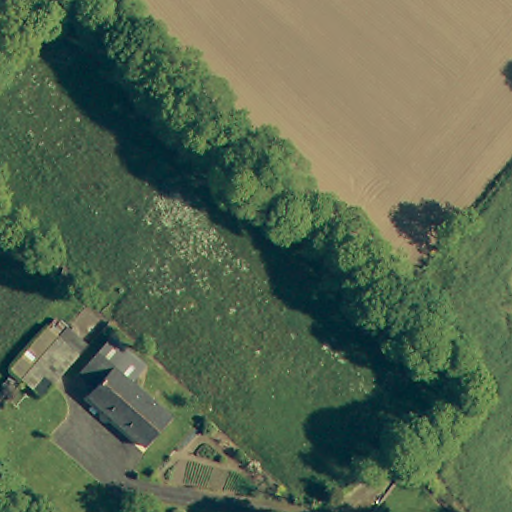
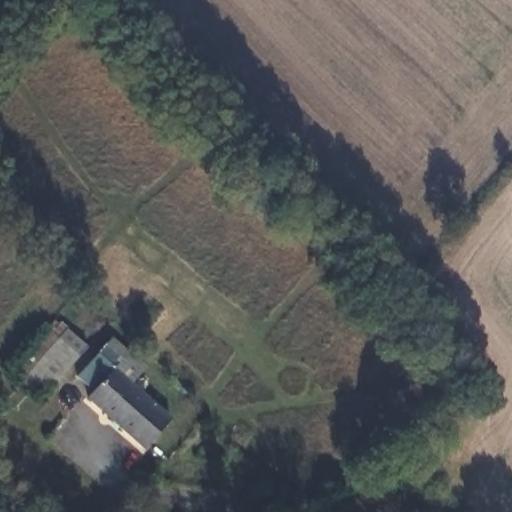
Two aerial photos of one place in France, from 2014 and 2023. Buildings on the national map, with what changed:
unchanged [(22,368),(58,329),(78,348),(42,386),(22,368)]
unchanged [(142,371),(131,384),(116,370),(96,393),(78,377),(108,342),(142,371)]
unchanged [(171,419),(148,448),(90,400),(93,398),(96,393),(116,370),(131,384),(171,419)]

